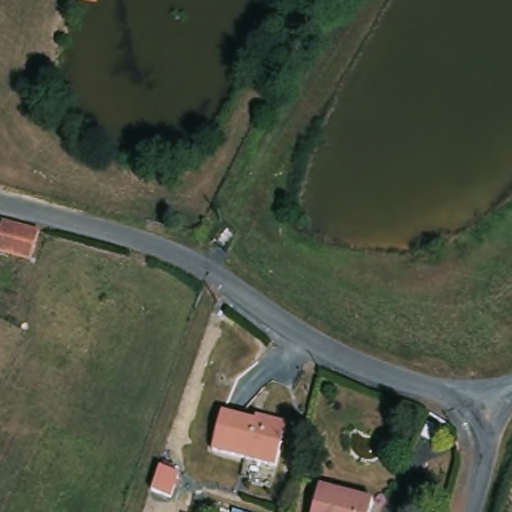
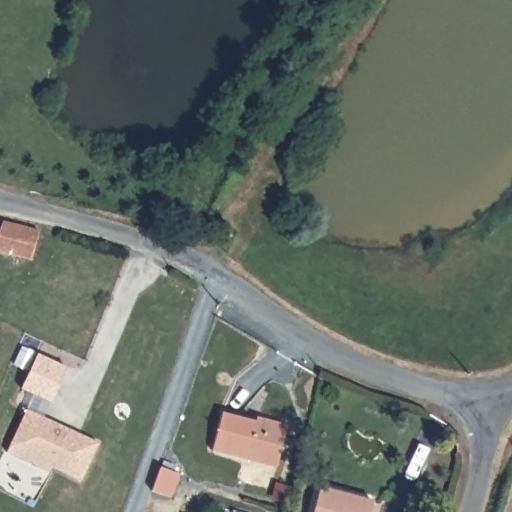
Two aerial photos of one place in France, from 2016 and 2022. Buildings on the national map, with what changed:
unchanged [(31,257),(0,248),(0,228),(2,218),(39,227),(31,257)]
new [(32,356),(62,369),(47,404),(17,391),(32,356)]
unchanged [(266,424),(267,417),(288,423),(275,470),(211,453),(223,411),(266,424)]
new [(22,412),(98,445),(81,483),(51,469),(49,474),(3,454),(22,412)]
new [(150,472),(169,479),(161,502),(142,496),(150,472)]
unchanged [(322,482),(375,498),(371,512),(314,512),(322,482)]

